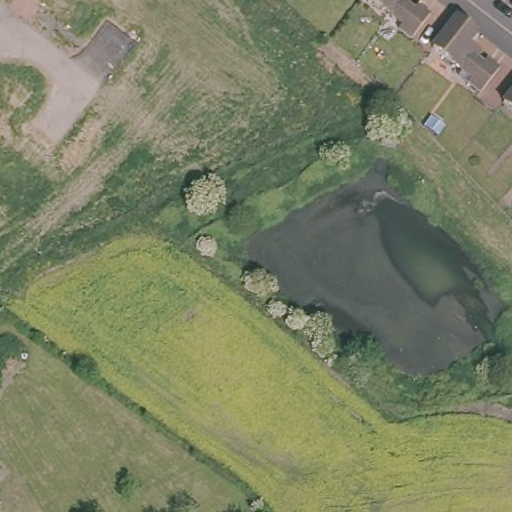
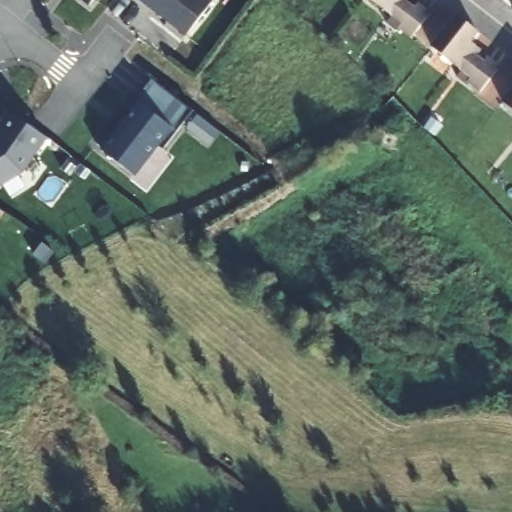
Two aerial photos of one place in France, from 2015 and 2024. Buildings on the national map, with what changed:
new [(212,3),(186,37),(138,0),(209,0),(212,3)]
unchanged [(412,4),(414,0),(416,0),(427,9),(408,33),(395,24),(400,19),(375,0),(407,0),(412,4)]
unchanged [(511,6),(512,5),(512,7),(511,6)]
unchanged [(455,12),(475,28),(467,37),(480,47),(475,53),(482,58),(486,54),(497,64),(478,89),(465,79),(470,74),(430,44),(455,12)]
new [(110,126),(117,132),(137,107),(133,103),(152,80),(193,112),(162,151),(157,147),(134,177),(102,152),(104,150),(95,144),(110,126)]
unchanged [(512,84),(512,107),(500,98),(512,84)]
new [(47,139),(23,174),(0,187),(0,130),(0,128),(10,113),(47,139)]

